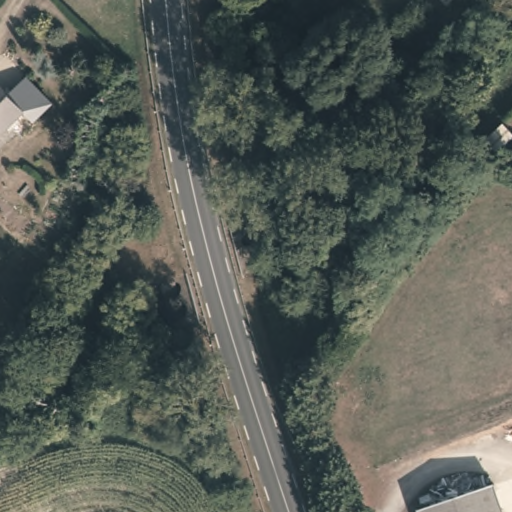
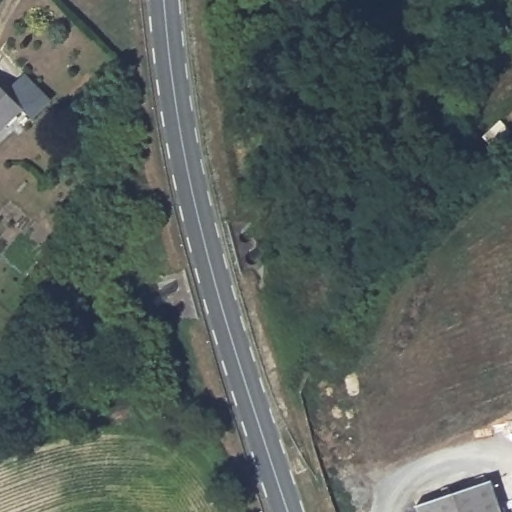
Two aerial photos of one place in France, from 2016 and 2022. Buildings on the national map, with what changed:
unchanged [(22,110),(0,135),(0,86),(22,110)]
unchanged [(511,132),(492,150),(481,136),(499,120),(511,132)]
unchanged [(420,507),(495,480),(506,512),(422,512),(420,507)]

